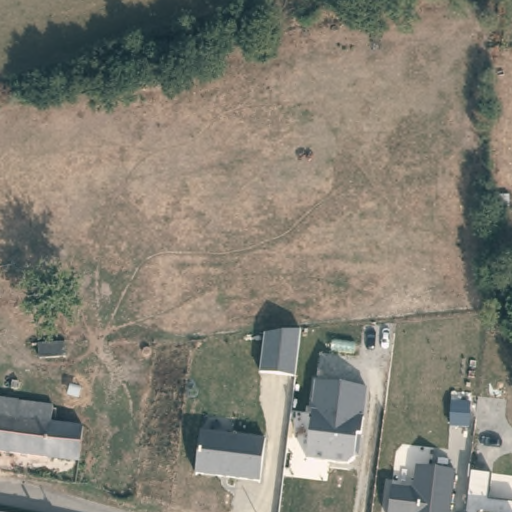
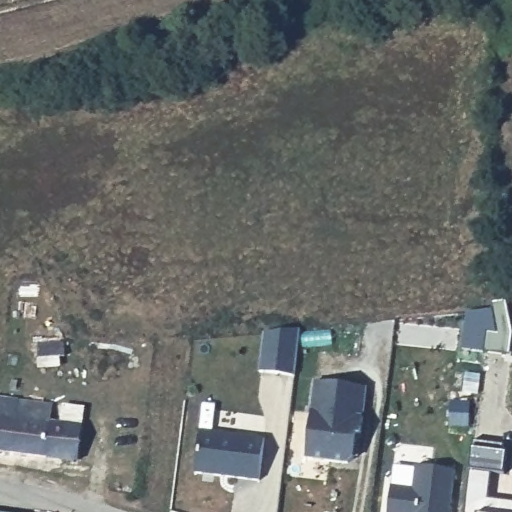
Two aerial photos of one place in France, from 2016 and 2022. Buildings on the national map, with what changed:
new [(512,326),(512,349),(511,356),(483,352),(461,348),(465,313),(491,310),(490,302),(507,300),(512,326)]
unchanged [(260,373),(266,333),(300,331),(294,375),(260,373)]
new [(72,339),(77,354),(38,357),(36,342),(72,339)]
unchanged [(366,388),(355,457),(346,465),(308,458),(317,381),(366,388)]
unchanged [(55,400),(52,420),(84,423),(77,461),(0,450),(0,394),(55,400)]
unchanged [(195,473),(200,432),(264,438),(260,481),(195,473)]
unchanged [(414,488),(418,467),(454,473),(449,512),(389,512),(393,486),(414,488)]
unchanged [(492,475),(489,500),(512,504),(512,512),(465,512),(470,473),(492,475)]
unchanged [(5,512),(0,512),(0,511),(5,512)]

